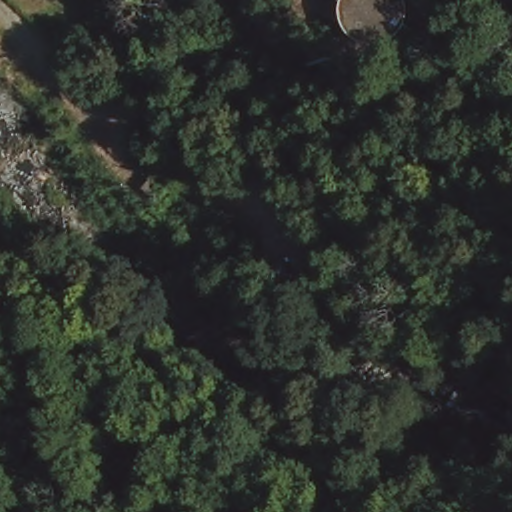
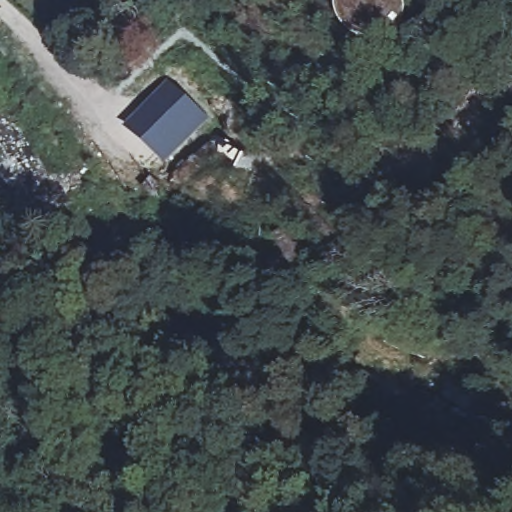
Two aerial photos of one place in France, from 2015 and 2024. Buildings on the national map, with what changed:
new [(167,76),(207,112),(165,162),(123,127),(167,76)]
unchanged [(155,194),(140,183),(149,171),(165,183),(155,194)]
unchanged [(318,260),(300,271),(280,237),(299,226),(318,260)]

